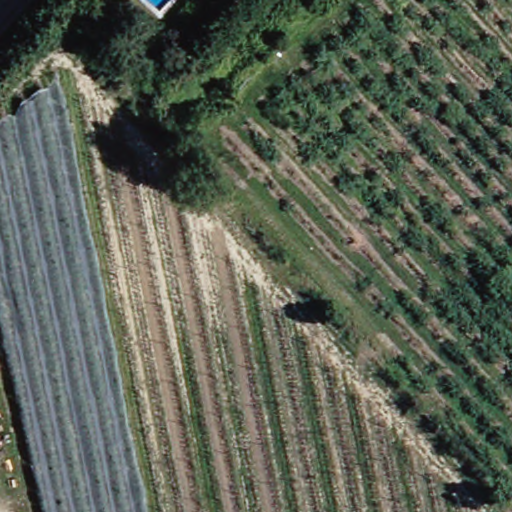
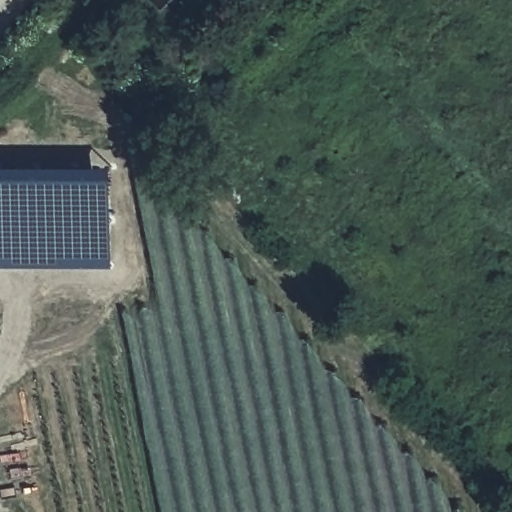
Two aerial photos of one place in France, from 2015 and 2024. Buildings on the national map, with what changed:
new [(113,267),(0,266),(0,165),(113,165),(113,267)]

